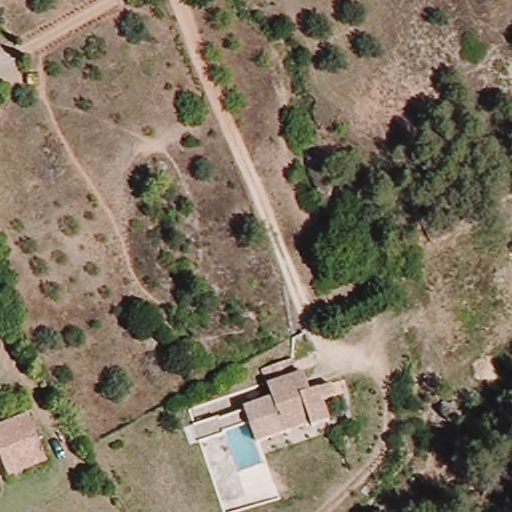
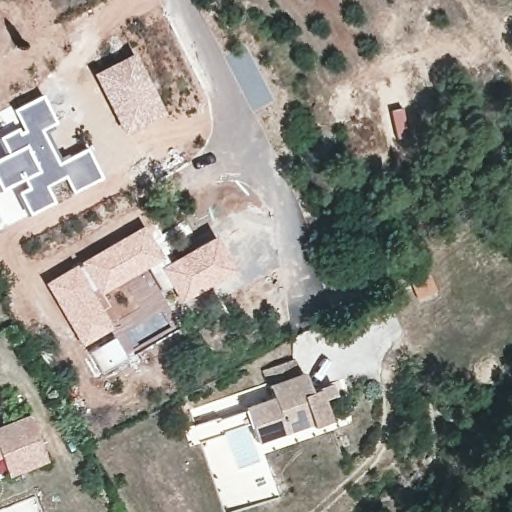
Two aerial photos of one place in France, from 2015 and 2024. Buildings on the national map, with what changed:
new [(134,50),(165,112),(123,133),(91,73),(134,50)]
new [(6,152),(0,142),(0,135),(19,124),(12,108),(41,93),(56,122),(43,130),(59,161),(88,145),(103,178),(73,193),(65,177),(48,186),(55,201),(29,216),(15,191),(25,186),(21,180),(0,191),(0,156),(6,152)]
new [(143,222),(162,256),(97,297),(75,262),(143,222)]
new [(214,233),(236,270),(180,302),(159,266),(214,233)]
new [(75,262),(97,297),(112,326),(82,344),(43,283),(75,262)]
new [(114,336),(126,356),(100,373),(88,353),(114,336)]
unchanged [(255,410),(273,404),(268,392),(262,377),(291,366),(297,381),(304,379),(310,398),(318,394),(331,389),(336,402),(322,406),(329,426),(313,432),(310,428),(285,437),(267,444),(257,448),(244,414),(255,410)]
unchanged [(35,416),(42,435),(52,461),(13,476),(5,456),(0,458),(0,430),(23,421),(35,416)]
unchanged [(219,419),(225,436),(200,446),(193,428),(219,419)]

